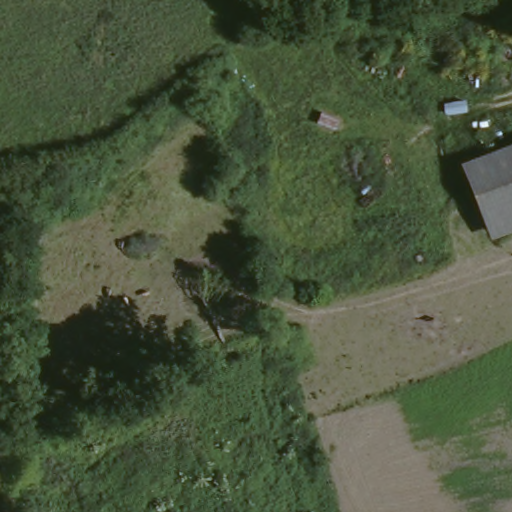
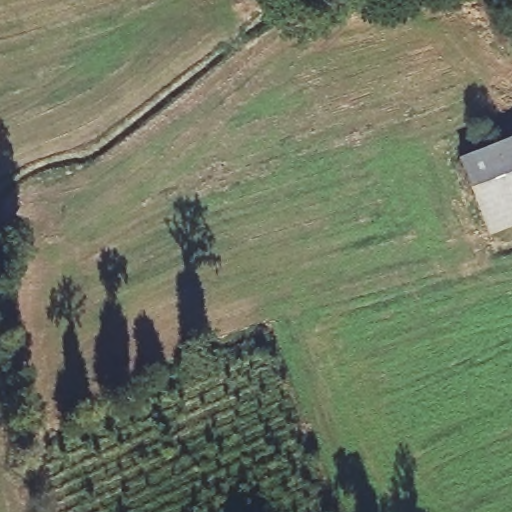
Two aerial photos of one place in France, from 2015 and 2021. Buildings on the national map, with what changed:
unchanged [(512,233),(487,243),(457,165),(512,144),(512,233)]

